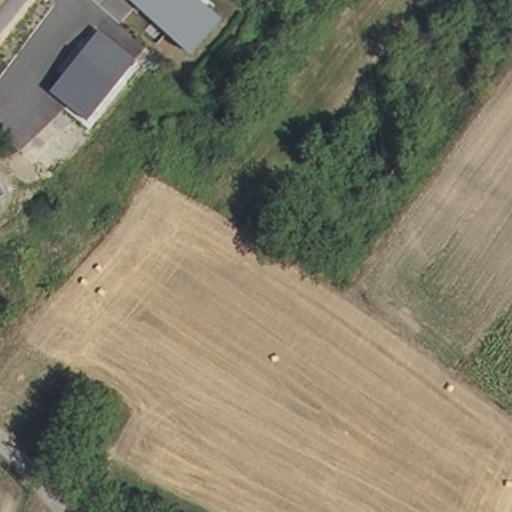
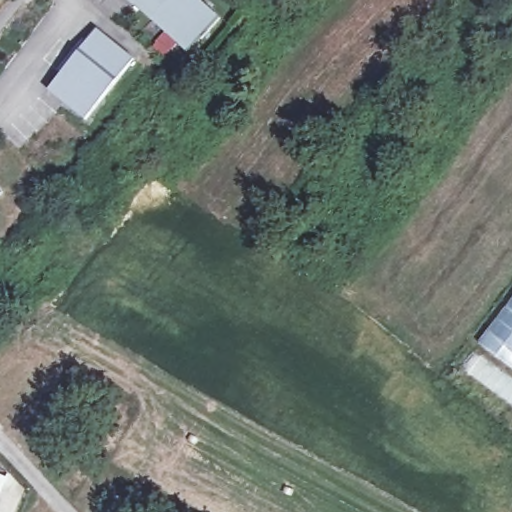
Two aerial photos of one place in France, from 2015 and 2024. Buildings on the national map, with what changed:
unchanged [(222,17),(190,54),(129,0),(203,0),(222,17)]
unchanged [(137,61),(85,122),(50,94),(98,30),(137,61)]
unchanged [(5,195),(0,198),(0,187),(5,195)]
new [(512,368),(478,343),(512,298),(512,368)]

